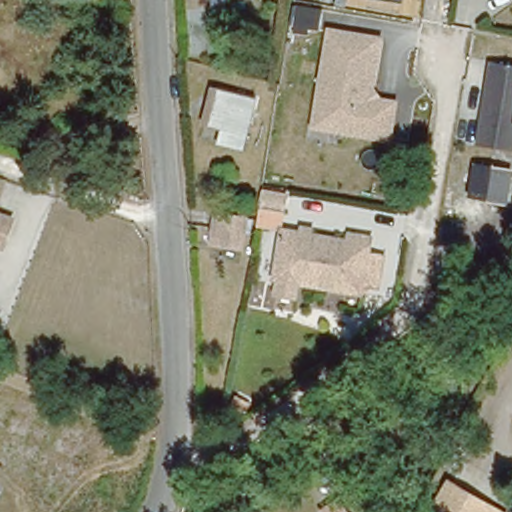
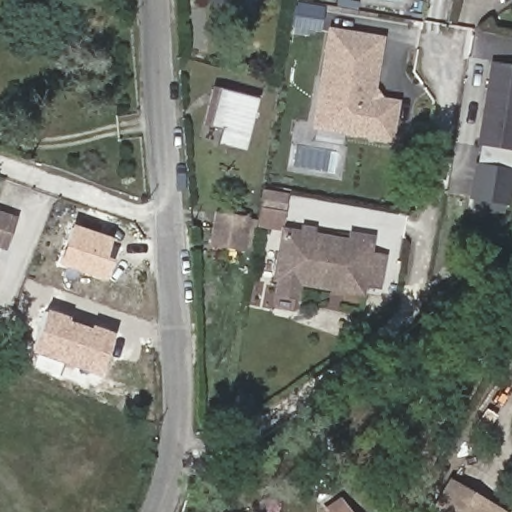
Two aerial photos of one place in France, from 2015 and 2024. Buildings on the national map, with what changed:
unchanged [(216,4),(242,2),(244,17),(217,19),(216,4)]
unchanged [(323,77),(331,33),(378,42),(369,96),(374,96),(378,102),(393,105),(387,139),(327,128),(315,126),(323,77)]
unchanged [(512,67),(512,146),(480,141),(493,64),(512,67)]
unchanged [(218,127),(206,124),(215,89),(252,99),(238,151),(213,145),(218,127)]
unchanged [(469,197),(475,163),(512,169),(512,183),(508,204),(469,197)]
unchanged [(268,189),(290,192),(287,210),(266,206),(268,189)]
unchanged [(8,212),(0,237),(0,210),(8,212)]
unchanged [(239,256),(211,251),(213,239),(217,212),(245,217),(241,243),(242,243),(239,256)]
new [(69,224),(110,237),(104,257),(112,260),(104,281),(56,263),(69,224)]
unchanged [(273,296),(276,281),(272,281),(280,232),(300,236),(301,231),(308,232),(307,237),(347,244),(348,237),(368,240),(366,256),(381,258),(376,288),(361,286),(359,295),(296,285),(293,299),(273,296)]
new [(111,332),(99,376),(30,353),(45,310),(111,332)]
unchanged [(437,511),(451,487),(492,511),(492,512),(439,512),(437,511)]
unchanged [(324,511),(340,501),(347,512),(325,512),(324,511)]

